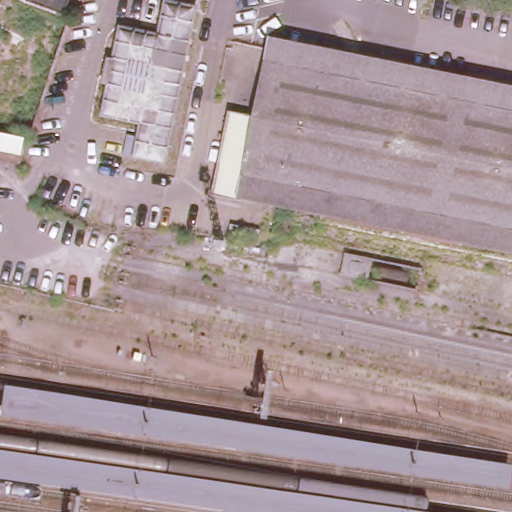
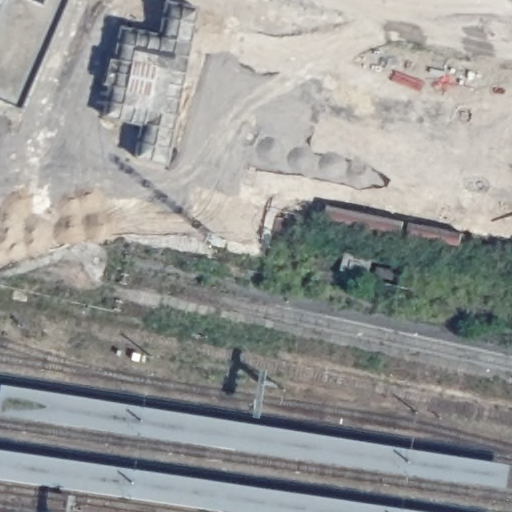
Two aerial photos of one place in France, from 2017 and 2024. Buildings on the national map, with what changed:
new [(50,0),(5,104),(0,102),(0,0),(50,0)]
demolished [(26,0),(70,0),(65,14),(26,0)]
unchanged [(130,158),(137,125),(101,119),(122,29),(155,36),(164,0),(176,0),(202,4),(168,164),(130,158)]
demolished [(512,253),(237,198),(215,194),(230,109),(252,114),(271,36),(512,85),(512,253)]
unchanged [(512,464),(508,490),(0,415),(5,383),(512,460),(512,464)]
unchanged [(419,512),(223,512),(0,480),(0,451),(419,512)]

